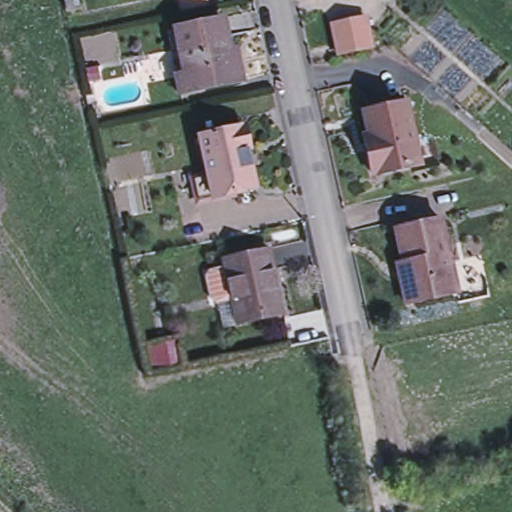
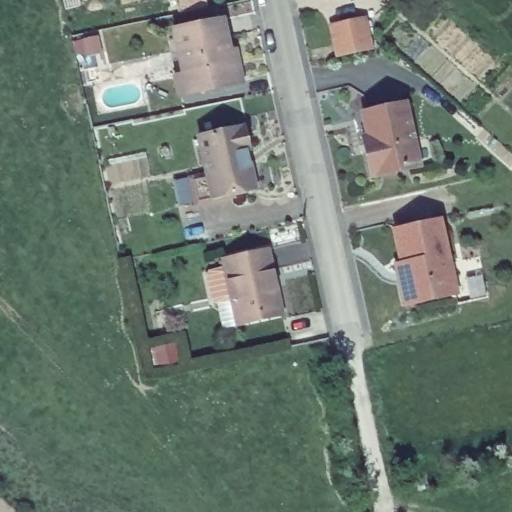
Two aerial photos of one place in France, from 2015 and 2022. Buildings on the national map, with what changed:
unchanged [(207,6),(179,12),(176,0),(206,0),(207,6)]
unchanged [(362,18),(370,48),(337,56),(329,26),(362,18)]
unchanged [(183,76),(192,73),(182,29),(222,20),(231,61),(237,59),(242,80),(196,91),(187,94),(183,76)]
unchanged [(365,134),(360,110),(401,99),(411,139),(417,164),(375,174),(375,171),(368,173),(360,136),(365,134)]
unchanged [(212,173),(203,134),(244,125),(250,124),(255,146),(250,147),(253,164),(258,186),(217,196),(203,199),(197,177),(212,173)]
unchanged [(393,226),(439,216),(455,291),(403,302),(395,262),(401,260),(393,226)]
unchanged [(241,323),(240,316),(235,297),(220,301),(215,297),(210,274),(213,269),(229,265),(227,257),(272,247),(285,306),(286,313),(241,323)]
unchanged [(158,343),(160,351),(177,348),(181,365),(170,367),(148,371),(144,346),(158,343)]

